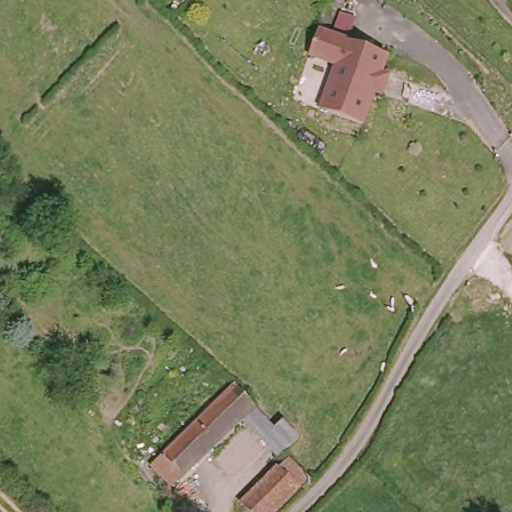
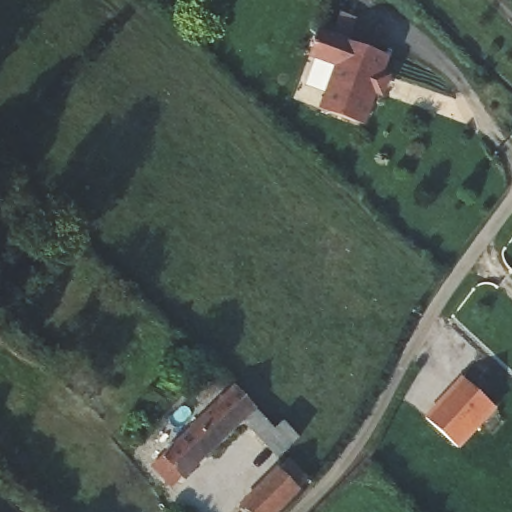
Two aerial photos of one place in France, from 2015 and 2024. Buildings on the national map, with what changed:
unchanged [(317,30),(389,57),(382,75),(389,77),(382,100),(375,99),(365,126),(320,109),(335,69),(307,60),(317,30)]
new [(460,450),(425,417),(462,376),(497,410),(460,450)]
unchanged [(228,382),(277,428),(285,421),(301,436),(284,453),(249,420),(183,489),(168,473),(161,466),(190,438),(182,429),(188,423),(220,391),(228,382)]
unchanged [(285,512),(247,512),(292,466),(311,485),(285,512)]

